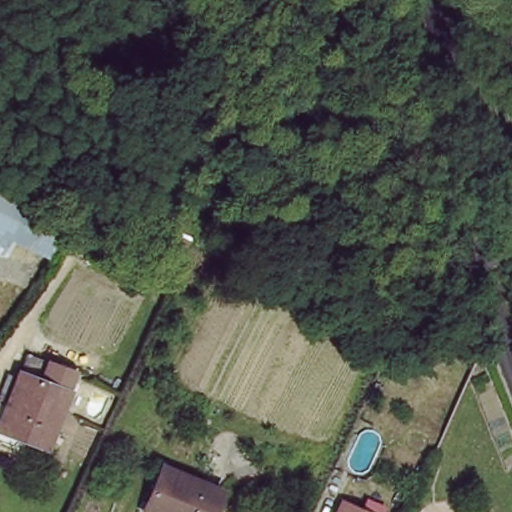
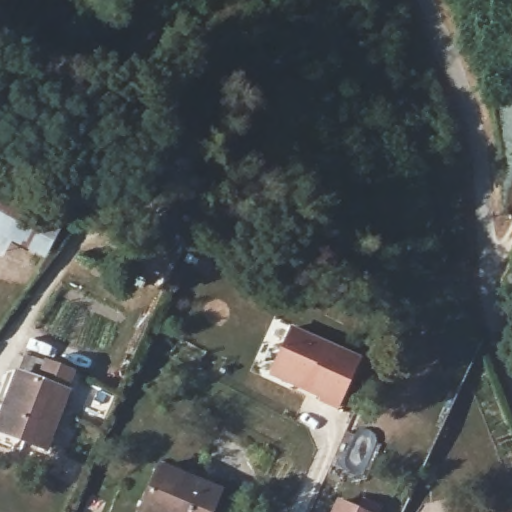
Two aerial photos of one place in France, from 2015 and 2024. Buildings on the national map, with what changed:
unchanged [(46,247),(0,226),(0,195),(58,222),(46,247)]
new [(274,367),(291,328),(359,357),(338,406),(321,399),(323,396),(308,390),(271,373),(274,367)]
unchanged [(18,388),(23,390),(33,366),(76,386),(69,401),(70,405),(45,464),(0,444),(0,409),(0,407),(9,412),(18,388)]
unchanged [(218,493),(212,512),(142,512),(161,470),(218,493)]
unchanged [(345,490),(383,506),(381,512),(335,512),(345,490)]

